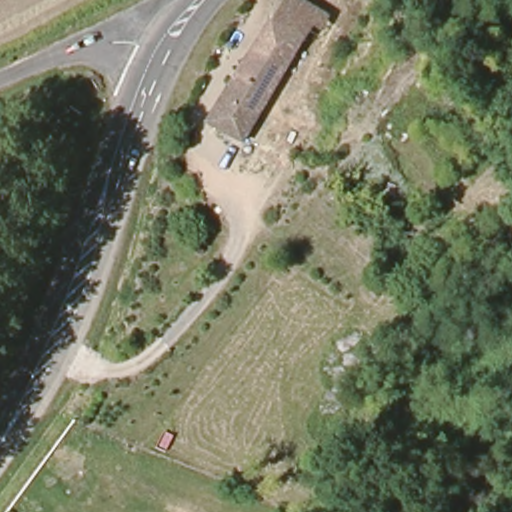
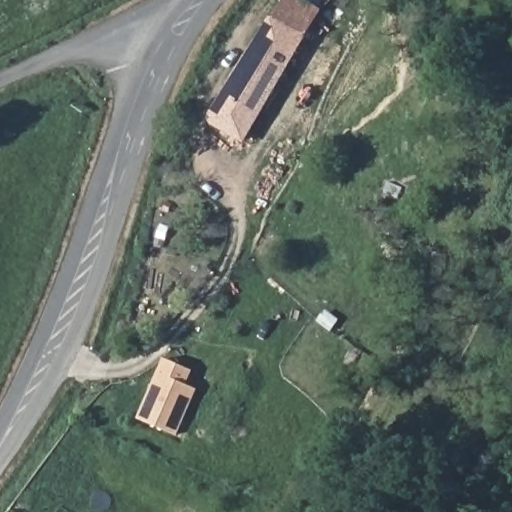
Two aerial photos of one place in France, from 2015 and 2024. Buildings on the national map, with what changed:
unchanged [(323,6),(247,141),(206,117),(273,0),(313,0),(323,6)]
new [(164,357),(193,370),(186,384),(196,389),(176,435),(137,418),(164,357)]

